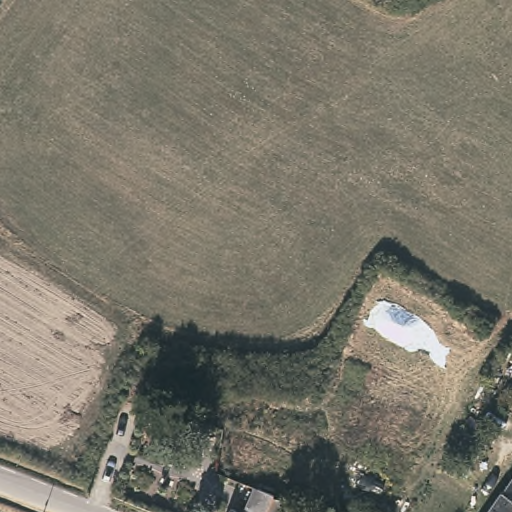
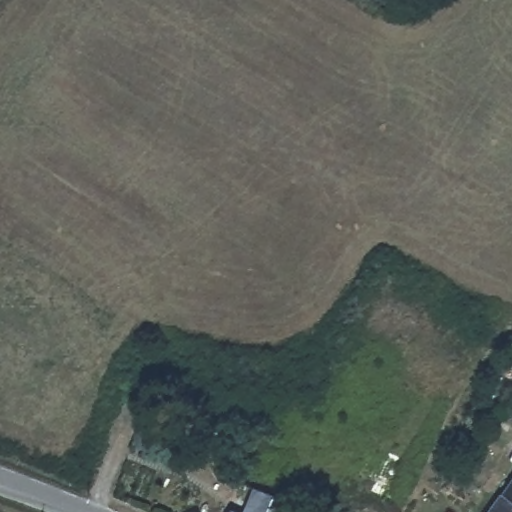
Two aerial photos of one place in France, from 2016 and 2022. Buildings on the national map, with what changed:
unchanged [(162,405),(151,418),(141,414),(148,401),(162,405)]
unchanged [(501,493),(512,476),(512,512),(488,512),(501,493)]
unchanged [(245,508),(240,505),(244,499),(252,502),(258,490),(273,496),(289,502),(285,512),(243,512),(245,508)]
unchanged [(229,509),(236,512),(228,512),(229,509)]

